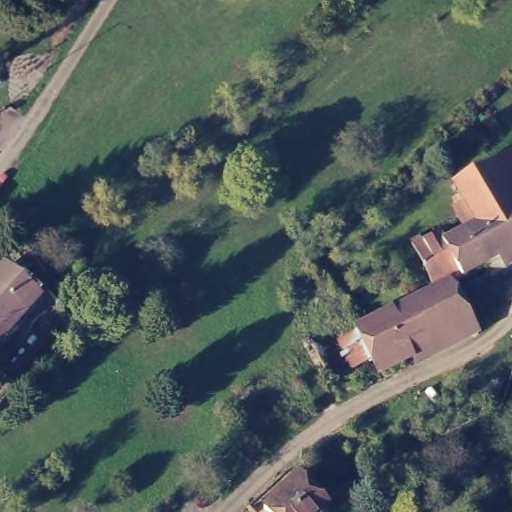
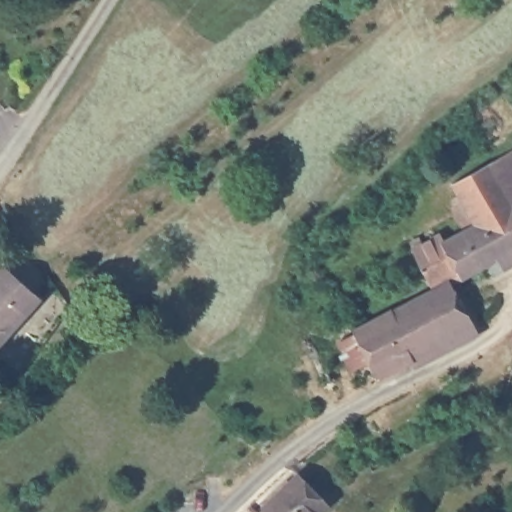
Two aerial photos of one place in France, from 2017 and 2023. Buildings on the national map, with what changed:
unchanged [(479,267),(476,261),(444,278),(423,239),(430,235),(434,241),(451,231),(457,236),(476,226),(463,202),(473,195),(463,179),(503,159),(512,153),(512,250),(479,267)]
unchanged [(38,297),(3,333),(0,336),(0,271),(6,265),(38,297)]
unchanged [(391,365),(380,348),(362,358),(351,335),(366,326),(369,329),(374,326),(460,280),(468,295),(480,317),(391,365)]
unchanged [(301,470),(308,477),(329,501),(320,512),(274,512),(266,504),(301,470)]

